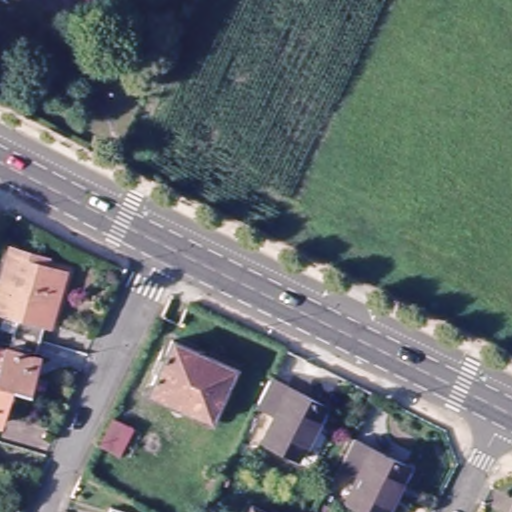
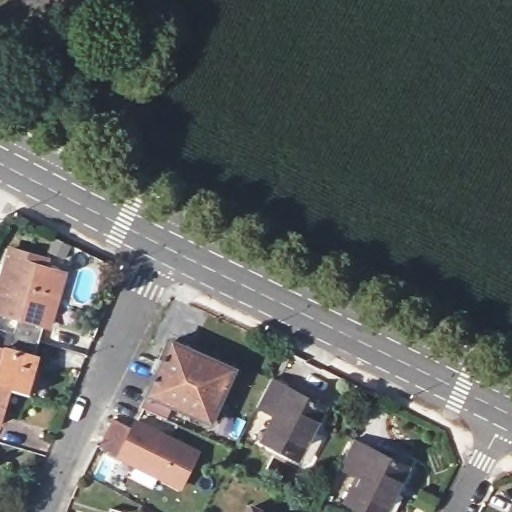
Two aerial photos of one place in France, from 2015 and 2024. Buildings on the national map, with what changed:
unchanged [(17,318),(0,312),(0,288),(11,249),(45,260),(44,266),(63,271),(48,325),(43,323),(38,341),(13,334),(17,318)]
unchanged [(38,341),(34,357),(39,358),(29,394),(11,389),(0,386),(0,364),(4,348),(8,349),(13,334),(38,341)]
unchanged [(213,421),(151,392),(161,371),(156,369),(161,358),(170,337),(175,339),(238,368),(213,421)]
unchanged [(299,461),(262,443),(274,418),(256,408),(271,380),(325,409),(299,461)]
unchanged [(11,389),(2,424),(0,424),(0,386),(11,389)]
demolished [(123,452),(102,442),(114,417),(136,427),(123,452)]
new [(102,442),(114,417),(136,427),(133,425),(135,420),(201,451),(181,491),(115,458),(119,450),(123,452),(102,442)]
unchanged [(360,512),(345,504),(357,480),(339,471),(354,441),(409,470),(388,512),(360,512)]
unchanged [(267,512),(250,512),(253,505),(267,512)]

